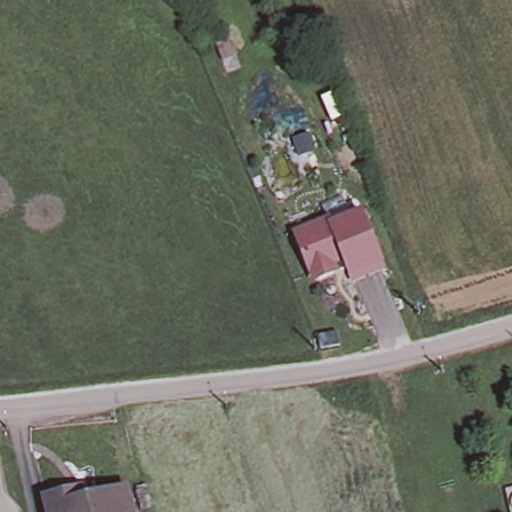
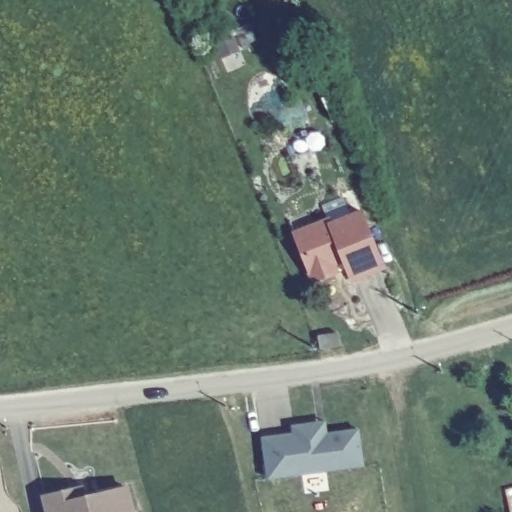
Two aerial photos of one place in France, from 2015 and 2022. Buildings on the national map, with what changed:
unchanged [(314,231),(321,228),(329,225),(324,213),(342,206),(345,205),(352,221),(362,217),(384,275),(372,279),(352,287),(344,265),(337,268),(335,269),(335,272),(332,281),(320,285),(311,281),(297,244),(317,237),(314,231)]
new [(262,437),(294,433),(292,426),(327,422),(327,431),(359,427),(364,465),(267,479),(262,437)]
unchanged [(70,501),(125,488),(132,512),(46,512),(42,498),(67,492),(70,501)]

